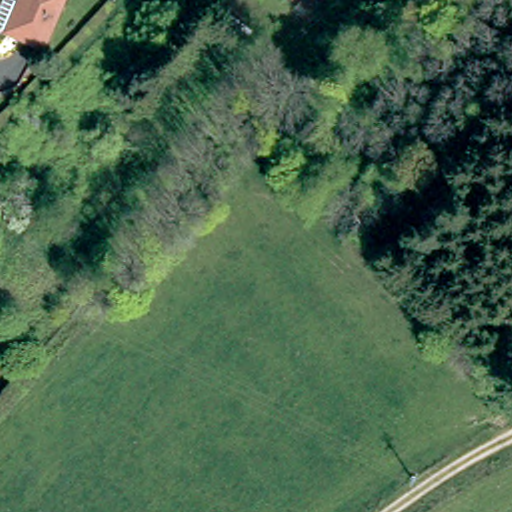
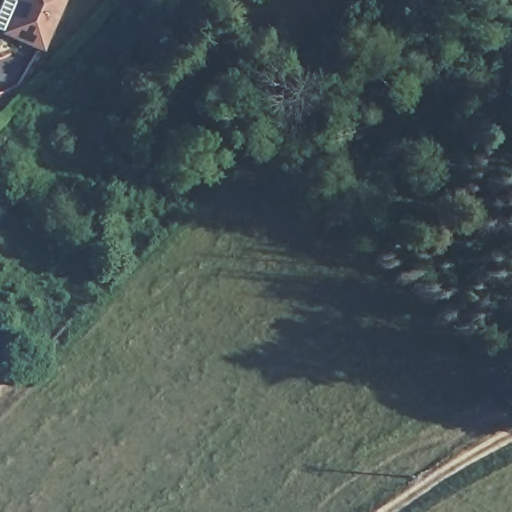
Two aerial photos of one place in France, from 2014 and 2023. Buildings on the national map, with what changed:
unchanged [(47,45),(0,28),(0,2),(1,0),(8,0),(19,4),(20,0),(65,0),(57,18),(47,45)]

